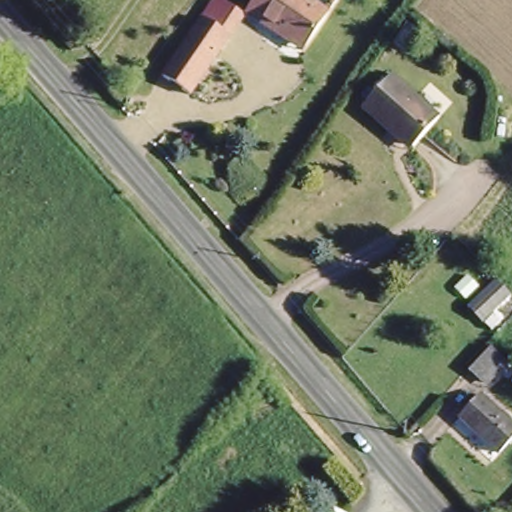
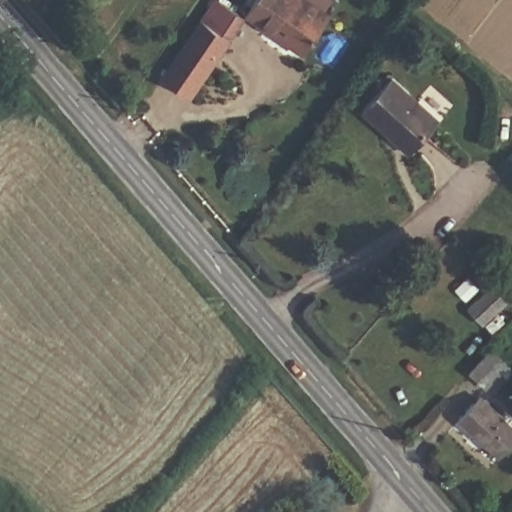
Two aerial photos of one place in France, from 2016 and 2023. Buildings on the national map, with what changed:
unchanged [(191,96),(161,80),(210,0),(213,0),(242,18),(191,96)]
unchanged [(251,0),(306,0),(327,12),(302,52),(242,18),(251,0)]
unchanged [(387,78),(434,115),(412,141),(395,127),(390,132),(362,110),(387,78)]
unchanged [(508,298),(482,322),(467,306),(494,282),(508,298)]
unchanged [(486,350),(501,366),(485,384),(467,371),(486,350)]
unchanged [(512,428),(512,433),(493,452),(456,416),(477,395),(512,428)]

